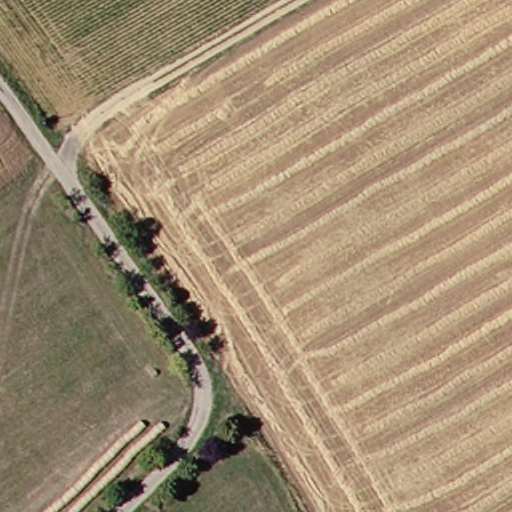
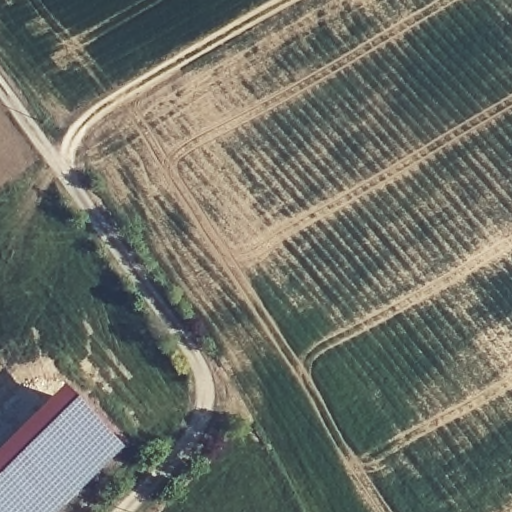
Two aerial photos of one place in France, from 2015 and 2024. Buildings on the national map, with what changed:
new [(120,450),(58,512),(0,512),(0,449),(60,390),(120,450)]

